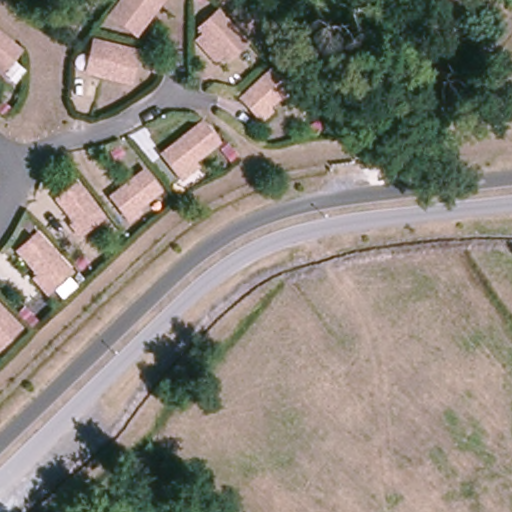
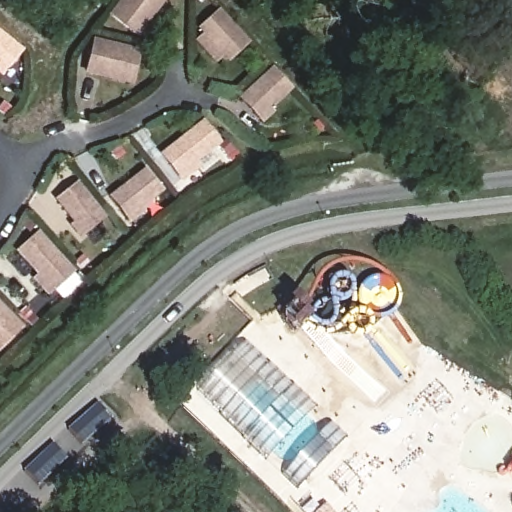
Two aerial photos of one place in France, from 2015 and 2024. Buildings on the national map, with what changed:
unchanged [(106,18),(118,0),(161,0),(135,39),(106,18)]
unchanged [(222,69),(194,37),(220,12),(247,42),(222,69)]
unchanged [(0,76),(0,32),(22,51),(3,79),(0,76)]
unchanged [(130,87),(81,75),(90,37),(141,50),(130,87)]
unchanged [(268,70),(287,93),(271,106),(276,115),(261,125),(234,99),(268,70)]
unchanged [(198,163),(200,167),(183,181),(159,155),(200,119),(222,140),(198,163)]
unchanged [(139,210),(142,214),(132,224),(110,196),(142,169),(162,190),(139,210)]
unchanged [(81,240),(68,230),(72,225),(54,202),(74,180),(105,219),(81,240)]
unchanged [(50,295),(15,252),(35,231),(74,273),(50,295)]
unchanged [(0,303),(22,326),(0,350),(0,303)]
new [(300,486),(198,389),(245,340),(345,437),(300,486)]
new [(327,505),(333,512),(320,512),(327,505)]

